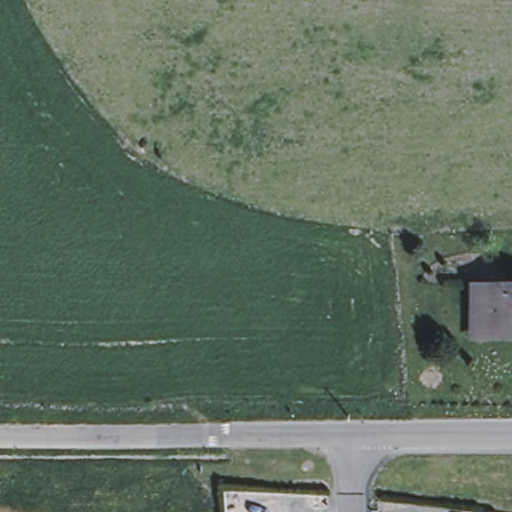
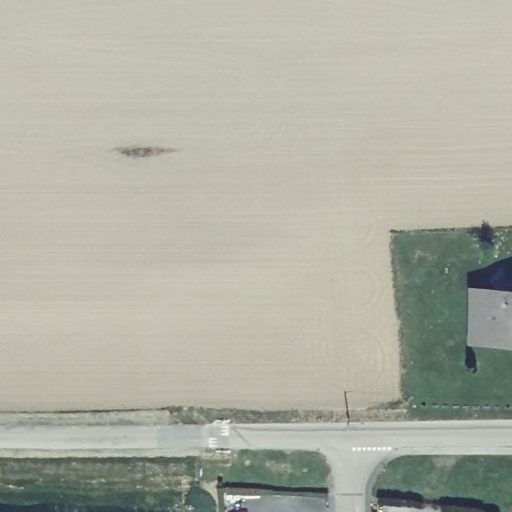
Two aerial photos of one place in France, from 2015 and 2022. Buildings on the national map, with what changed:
unchanged [(475,289),(488,289),(512,289),(512,337),(490,337),(475,337),(475,289)]

